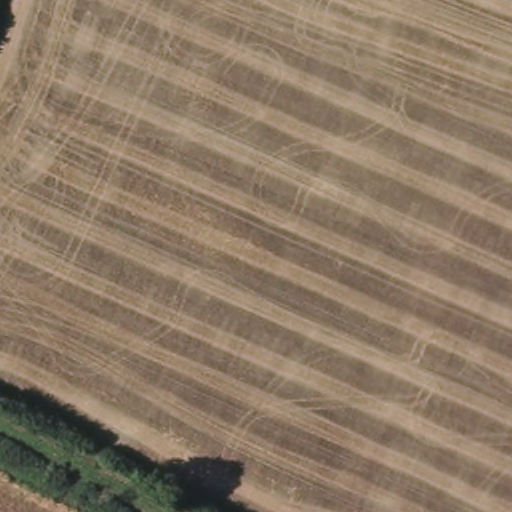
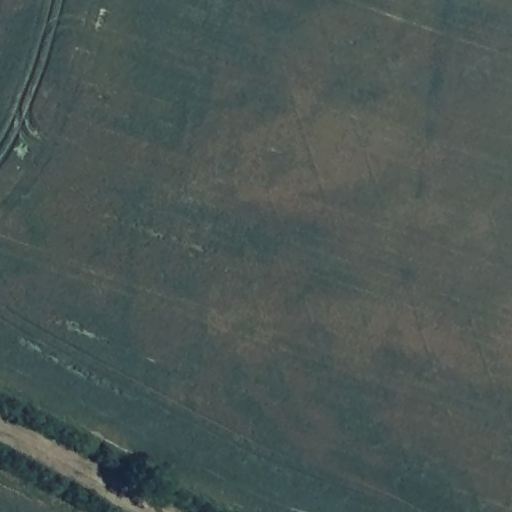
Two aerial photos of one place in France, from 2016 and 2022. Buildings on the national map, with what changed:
[]

